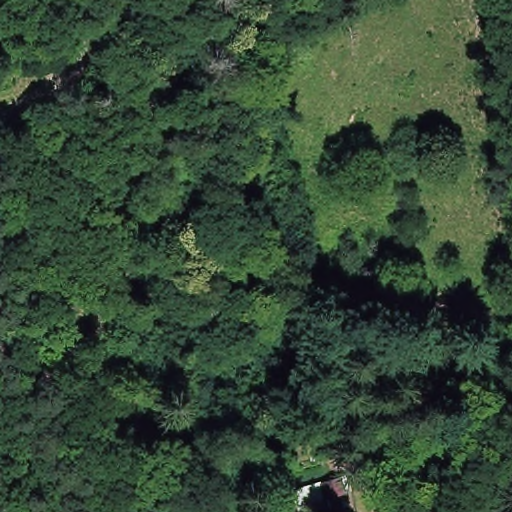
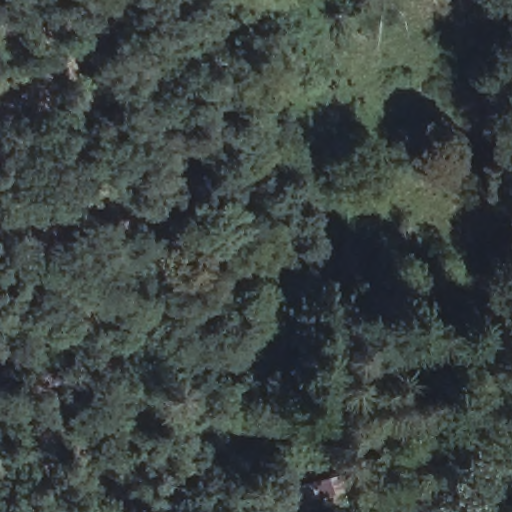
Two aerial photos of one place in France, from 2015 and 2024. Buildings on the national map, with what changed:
unchanged [(336,478),(340,492),(323,497),(322,494),(297,502),(293,491),(336,478)]

